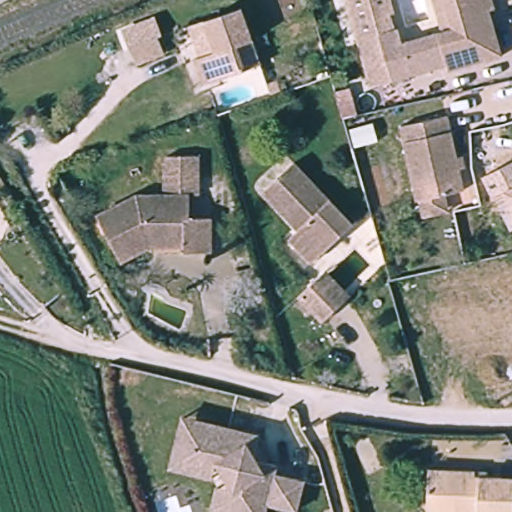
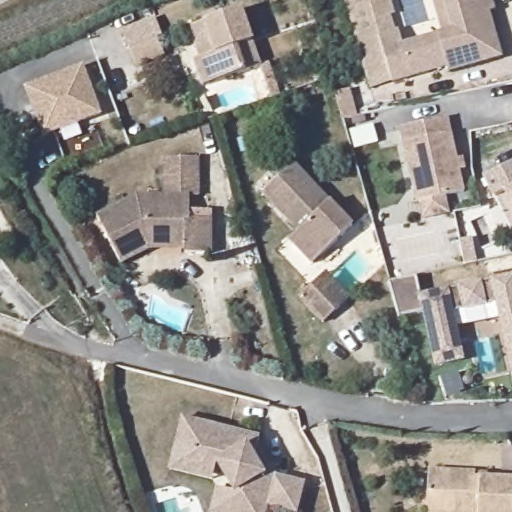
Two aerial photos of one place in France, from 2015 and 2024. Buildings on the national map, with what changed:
unchanged [(365,53),(346,0),(392,0),(408,44),(455,29),(446,0),(494,0),(499,11),(487,15),(503,60),(453,77),(450,70),(398,87),(379,93),(365,53)]
unchanged [(264,65),(213,83),(203,55),(223,48),(212,15),(244,5),(264,65)]
unchanged [(159,44),(131,53),(125,37),(154,27),(159,44)]
new [(24,88),(83,68),(99,117),(41,137),(24,88)]
unchanged [(455,139),(465,137),(468,149),(458,152),(462,174),(442,180),(447,200),(420,208),(392,126),(449,107),(455,139)]
unchanged [(197,153),(196,193),(188,193),(188,218),(207,220),(206,254),(180,253),(180,244),(145,244),(144,234),(109,246),(95,208),(138,191),(140,194),(160,193),(160,152),(197,153)]
unchanged [(360,223),(318,258),(293,230),(302,222),(271,185),(303,157),(360,223)]
unchanged [(509,231),(482,177),(512,163),(512,230),(509,231)]
new [(470,239),(475,261),(465,265),(460,241),(470,239)]
unchanged [(328,269),(350,294),(319,321),(296,293),(326,267),(328,269)]
new [(509,372),(495,306),(452,313),(465,360),(434,367),(423,311),(398,317),(389,282),(415,277),(420,294),(512,275),(512,371),(509,372)]
unchanged [(239,486),(241,475),(183,464),(192,417),(269,432),(264,457),(284,461),(282,471),(312,477),(306,505),(274,499),(271,512),(237,512),(222,509),(226,484),(239,486)]
unchanged [(481,477),(512,478),(512,512),(429,512),(430,467),(481,468),(481,477)]

